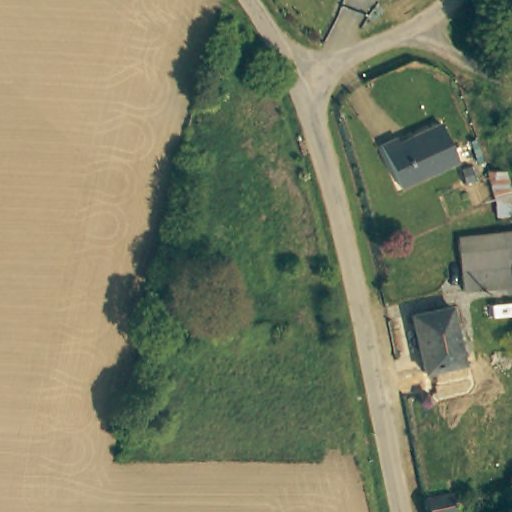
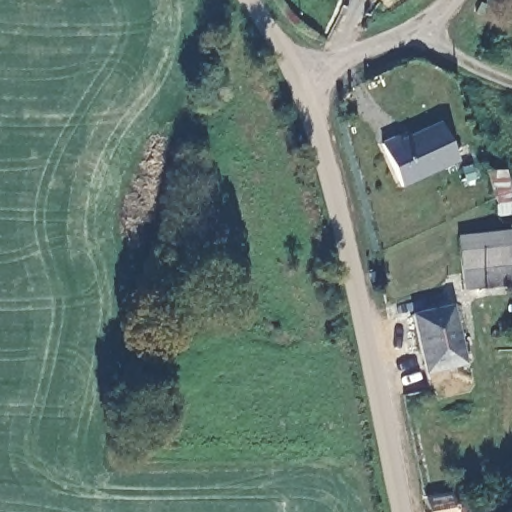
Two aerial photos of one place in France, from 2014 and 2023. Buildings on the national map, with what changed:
unchanged [(381,141),(397,133),(400,140),(415,133),(415,131),(441,119),(458,157),(401,183),(381,141)]
unchanged [(462,293),(458,241),(512,236),(512,288),(462,293)]
unchanged [(170,321),(170,295),(185,294),(184,320),(170,321)]
unchanged [(462,363),(454,365),(422,373),(410,316),(450,306),(462,363)]
unchanged [(455,492),(456,496),(466,494),(469,508),(461,510),(460,511),(460,512),(431,512),(428,497),(455,492)]

